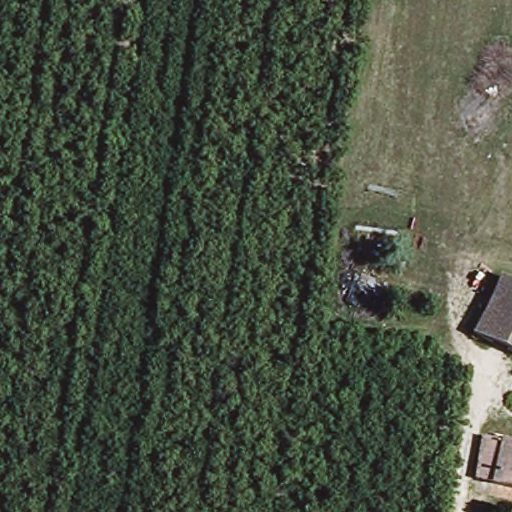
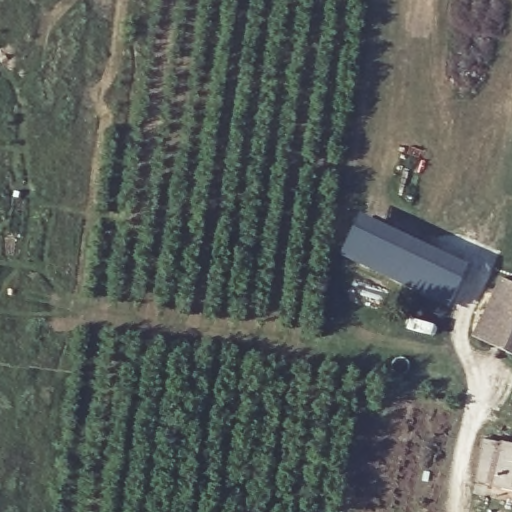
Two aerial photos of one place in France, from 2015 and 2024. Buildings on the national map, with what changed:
new [(360,212),(470,264),(450,307),(339,254),(360,212)]
unchanged [(505,273),(512,276),(512,349),(475,332),(505,273)]
unchanged [(481,439),(512,445),(512,487),(472,479),(481,439)]

